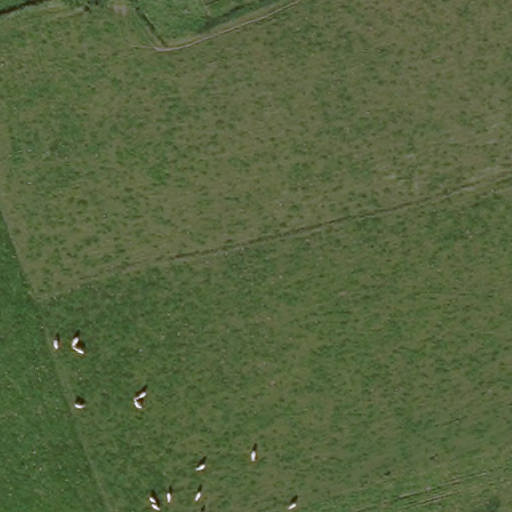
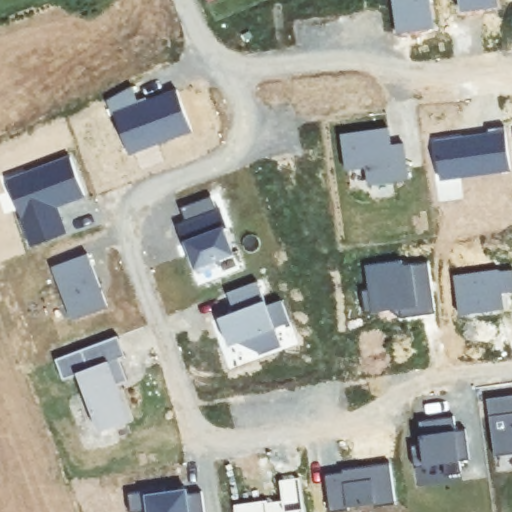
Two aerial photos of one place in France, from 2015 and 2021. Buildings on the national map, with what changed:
new [(431,25),(395,30),(392,0),(429,0),(431,25)]
new [(498,6),(460,10),(459,0),(497,0),(498,6)]
new [(133,88),(139,106),(178,92),(192,132),(129,155),(115,116),(114,116),(108,100),(133,88)]
new [(488,135),(486,129),(503,126),(508,170),(438,178),(434,141),(488,135)]
new [(388,128),(391,145),(404,144),(408,181),(368,185),(366,168),(346,170),(342,133),(388,128)]
new [(70,157),(84,196),(50,208),(53,217),(58,215),(64,234),(30,245),(7,180),(70,157)]
new [(186,223),(180,207),(212,196),(218,211),(221,211),(228,228),(223,230),(233,254),(213,261),(215,265),(196,271),(185,242),(183,244),(176,226),(186,223)]
new [(87,255),(105,309),(71,321),(53,267),(87,255)]
new [(369,287),(367,264),(403,260),(403,265),(429,261),(435,313),(400,317),(399,308),(364,312),(362,288),(369,287)]
new [(500,270),(500,273),(512,272),(512,292),(502,293),(504,308),(458,314),(453,275),(500,270)]
new [(233,312),(226,292),(256,281),(264,306),(280,301),(288,325),(273,330),(279,348),(257,356),(255,353),(234,342),(226,345),(216,318),(233,312)]
new [(123,357),(117,360),(125,381),(114,385),(128,426),(96,437),(76,380),(62,385),(53,359),(116,337),(123,357)]
new [(512,396),(512,454),(494,456),(488,398),(512,396)]
new [(484,457),(469,459),(459,460),(461,472),(444,474),(443,462),(413,465),(411,443),(421,442),(418,419),(453,415),(455,430),(466,428),(466,434),(481,432),(484,457)]
new [(343,471),(342,470),(390,463),(395,505),(374,507),(374,503),(348,506),(348,510),(329,512),(324,473),(343,471)]
new [(267,502),(282,501),(280,481),(299,478),(303,512),(235,512),(234,505),(266,500),(267,502)]
new [(164,492),(186,490),(187,494),(201,492),(204,512),(148,512),(148,510),(134,512),(130,512),(128,493),(146,490),(164,488),(164,492)]

